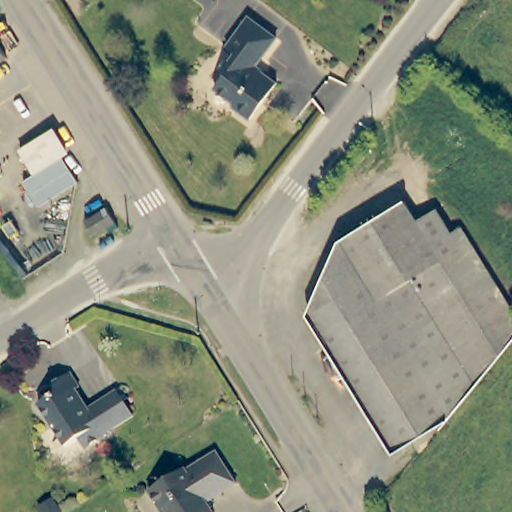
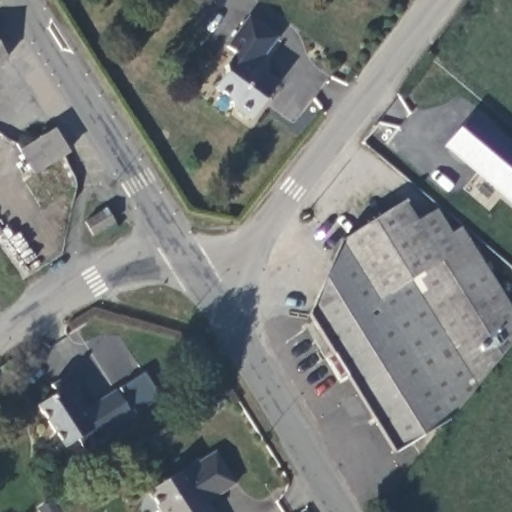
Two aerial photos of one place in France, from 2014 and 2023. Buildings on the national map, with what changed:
unchanged [(244,17),(277,42),(256,69),(276,85),(246,125),(225,109),(225,96),(213,86),(226,68),(223,64),(229,55),(220,49),(231,35),(244,17)]
unchanged [(7,62),(0,66),(0,50),(7,62)]
new [(473,113),(512,146),(512,204),(443,148),(473,113)]
unchanged [(68,159),(38,178),(23,155),(54,136),(68,159)]
unchanged [(310,313),(345,237),(406,201),(417,219),(443,261),(473,243),(512,311),(512,341),(450,417),(395,449),(310,313)]
unchanged [(114,216),(91,230),(84,220),(106,205),(114,216)]
unchanged [(451,233),(462,227),(473,243),(443,261),(417,219),(437,209),(451,233)]
unchanged [(87,385),(80,390),(94,411),(120,395),(134,416),(104,435),(105,438),(87,450),(80,440),(66,448),(39,407),(58,394),(54,386),(77,369),(87,385)]
unchanged [(214,502),(220,512),(162,512),(162,507),(151,491),(192,467),(195,471),(223,453),(242,483),(214,502)]

